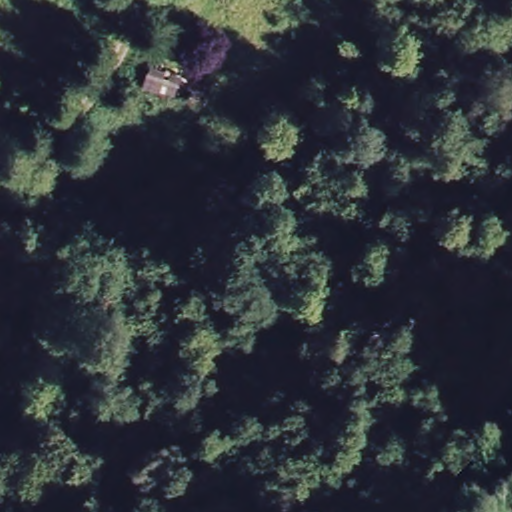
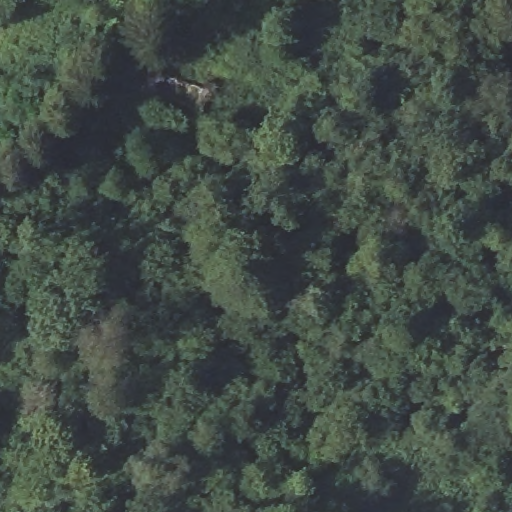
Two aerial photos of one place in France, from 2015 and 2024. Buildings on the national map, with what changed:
unchanged [(150,60),(212,85),(201,107),(138,87),(150,60)]

